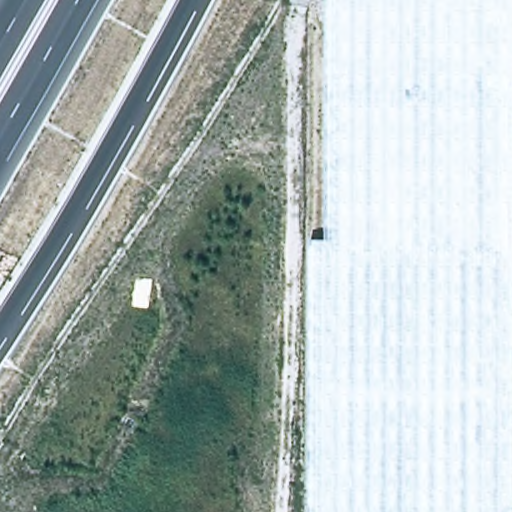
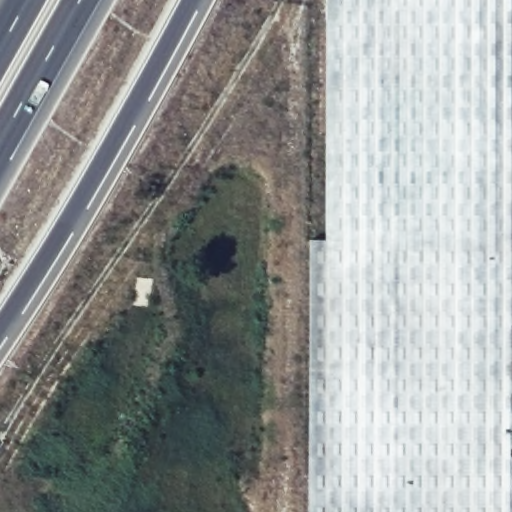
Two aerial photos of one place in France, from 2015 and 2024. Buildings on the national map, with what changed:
unchanged [(308,512),(311,237),(324,237),(326,0),(512,0),(512,512),(308,512)]

